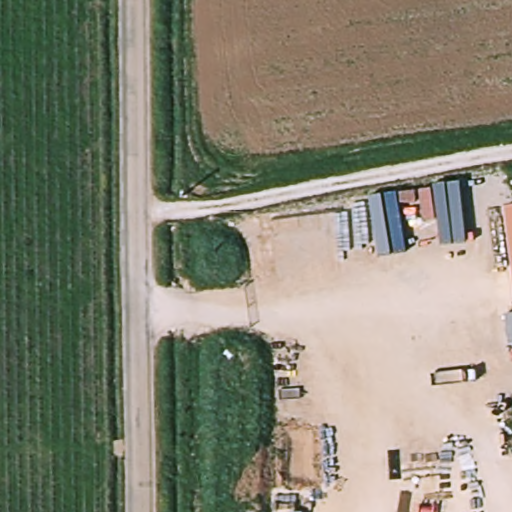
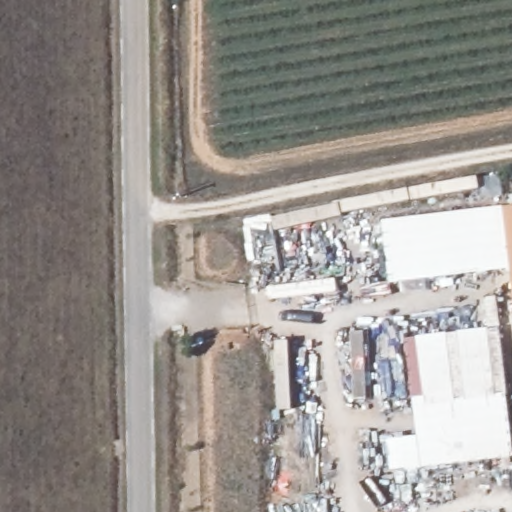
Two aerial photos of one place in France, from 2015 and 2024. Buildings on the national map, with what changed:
new [(512,253),(512,267),(388,284),(380,221),(505,210),(512,253)]
unchanged [(512,210),(512,255),(505,210),(512,210)]
new [(415,435),(404,339),(487,330),(487,331),(497,330),(512,453),(512,458),(407,469),(403,438),(415,435)]

